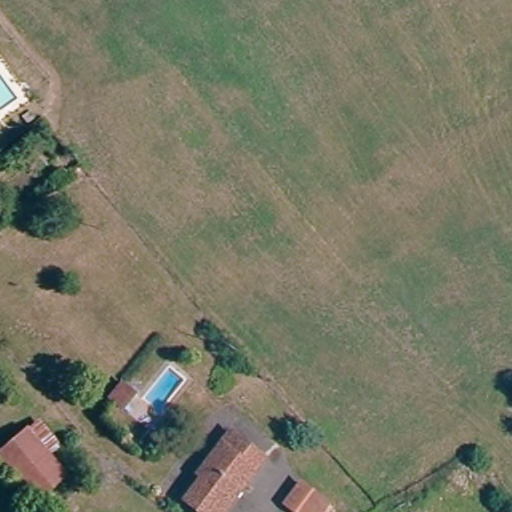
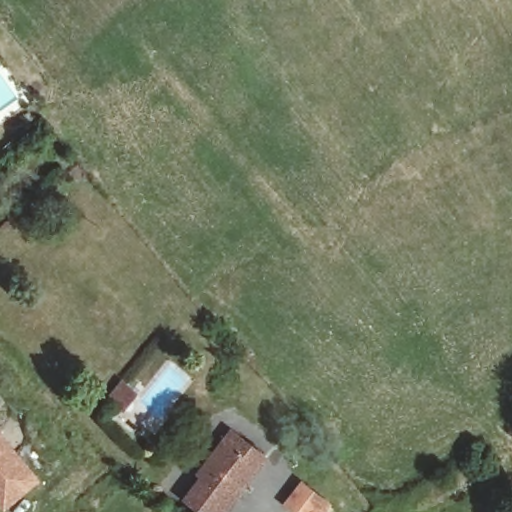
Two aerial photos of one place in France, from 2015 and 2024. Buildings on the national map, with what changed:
new [(0,404),(0,392),(6,399),(0,404)]
unchanged [(145,406),(133,421),(119,409),(132,394),(145,406)]
demolished [(51,452),(67,469),(39,494),(2,452),(30,428),(32,429),(51,452)]
new [(3,512),(2,512),(0,510),(0,431),(41,481),(3,512)]
unchanged [(234,431),(245,439),(269,457),(225,512),(207,512),(188,498),(205,475),(201,473),(214,456),(225,442),(234,431)]
unchanged [(331,504),(325,512),(301,512),(290,504),(305,484),(331,504)]

